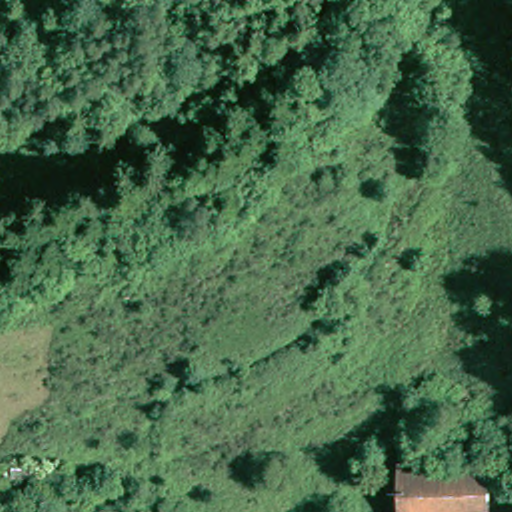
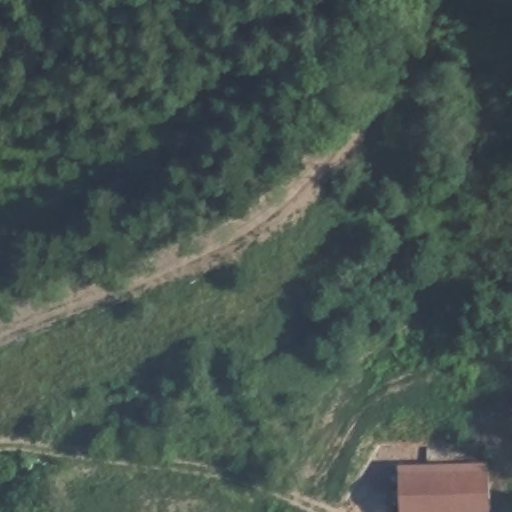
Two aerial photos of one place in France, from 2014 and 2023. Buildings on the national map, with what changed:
unchanged [(395,467),(399,466),(400,450),(428,450),(429,468),(484,468),(485,506),(482,508),(465,509),(465,512),(398,512),(397,491),(389,491),(387,480),(397,480),(395,467)]

